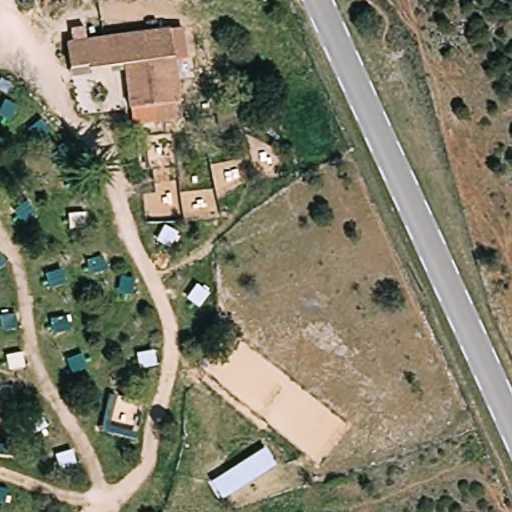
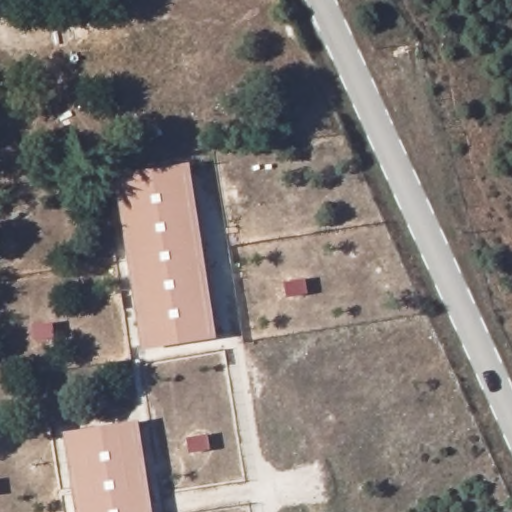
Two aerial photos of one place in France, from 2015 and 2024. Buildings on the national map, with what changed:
demolished [(189,27),(193,57),(173,58),(182,121),(129,125),(119,67),(67,72),(64,42),(169,29),(189,27)]
new [(216,338),(142,350),(113,175),(188,163),(216,338)]
new [(75,512),(63,433),(137,423),(151,512),(75,512)]
demolished [(277,438),(294,461),(307,455),(314,472),(303,478),(307,490),(290,497),(283,480),(271,485),(263,472),(240,490),(228,474),(277,438)]

